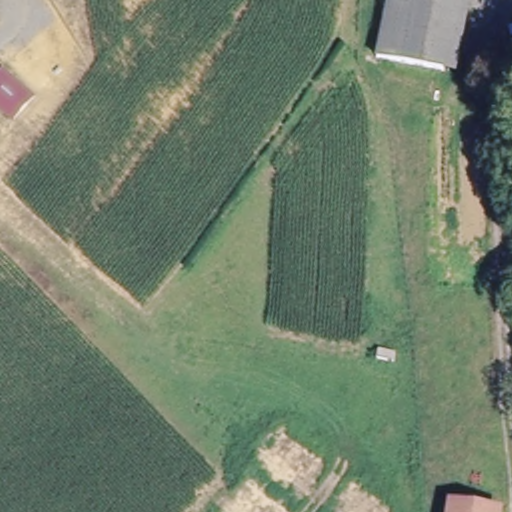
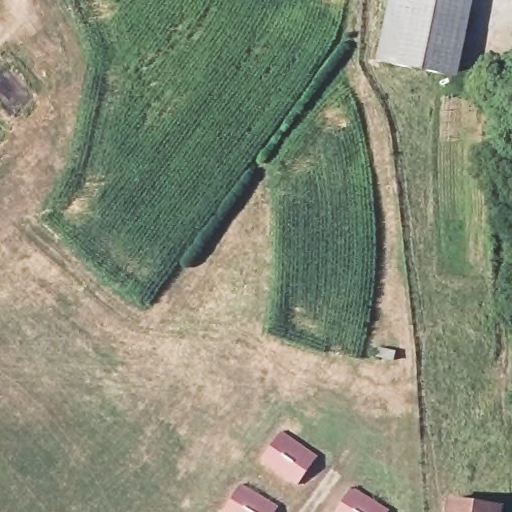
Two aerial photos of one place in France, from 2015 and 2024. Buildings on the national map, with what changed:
unchanged [(450,70),(385,56),(396,0),(464,0),(450,70)]
new [(318,460),(295,488),(262,460),(284,432),(318,460)]
new [(245,482),(280,508),(278,512),(226,512),(224,510),(245,482)]
new [(388,512),(335,512),(354,485),(390,509),(388,512)]
unchanged [(497,512),(449,512),(451,497),(499,504),(497,512)]

